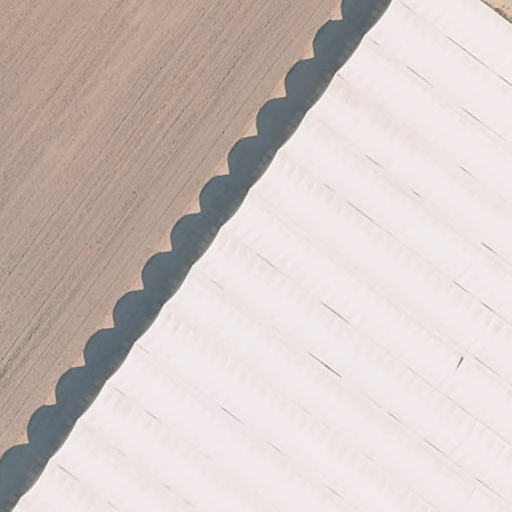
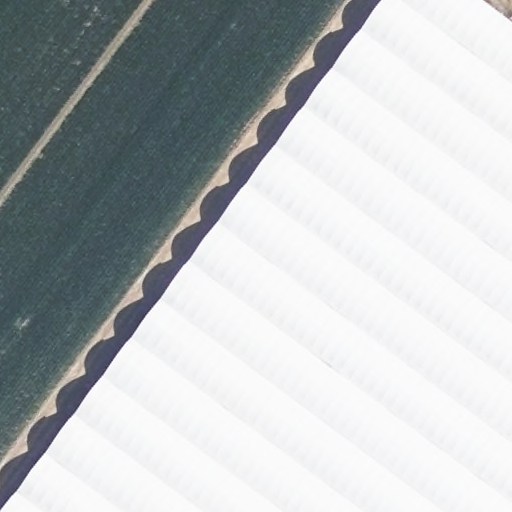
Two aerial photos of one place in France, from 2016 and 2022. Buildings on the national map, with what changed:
unchanged [(481,0),(512,23),(512,512),(5,512),(386,0),(481,0)]

